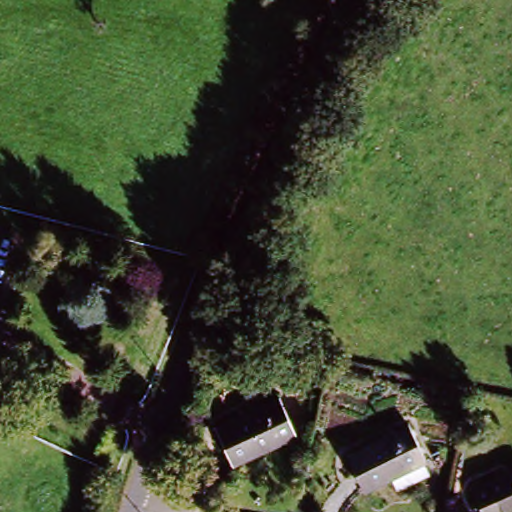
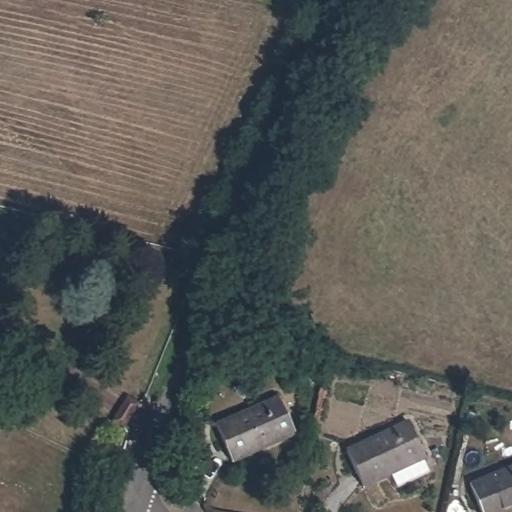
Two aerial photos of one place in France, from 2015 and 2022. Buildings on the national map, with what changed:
unchanged [(278,403),(295,437),(230,468),(213,434),(278,403)]
unchanged [(388,487),(385,477),(358,487),(343,453),(405,427),(420,462),(417,464),(421,474),(388,487)]
unchanged [(512,512),(479,512),(467,491),(512,468),(512,512)]

